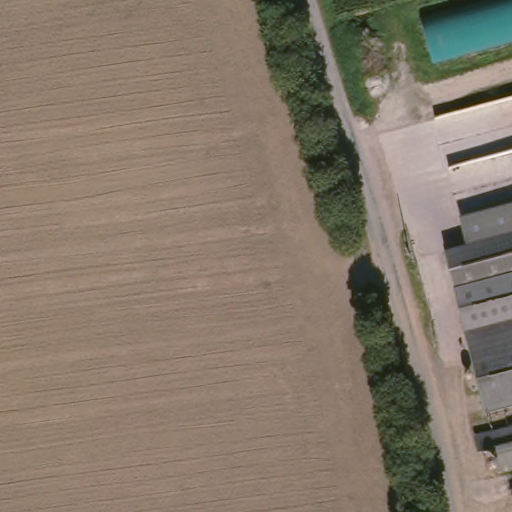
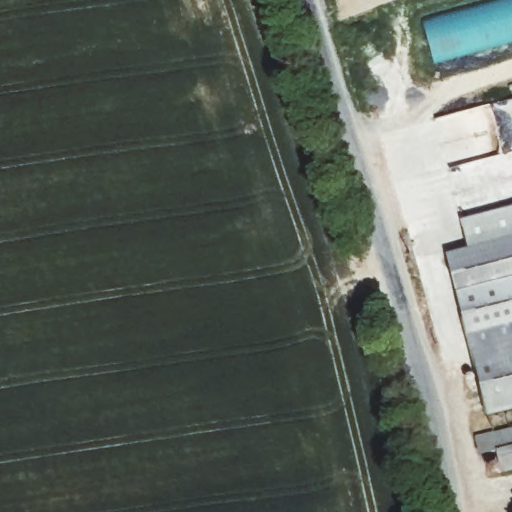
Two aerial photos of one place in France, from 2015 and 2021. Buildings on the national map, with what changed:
unchanged [(417,19),(489,0),(512,0),(512,44),(429,65),(417,19)]
unchanged [(463,214),(512,202),(512,234),(471,244),(463,214)]
unchanged [(446,251),(471,244),(512,234),(512,404),(488,410),(446,251)]
unchanged [(512,467),(506,469),(501,447),(484,451),(480,435),(512,426),(512,467)]

